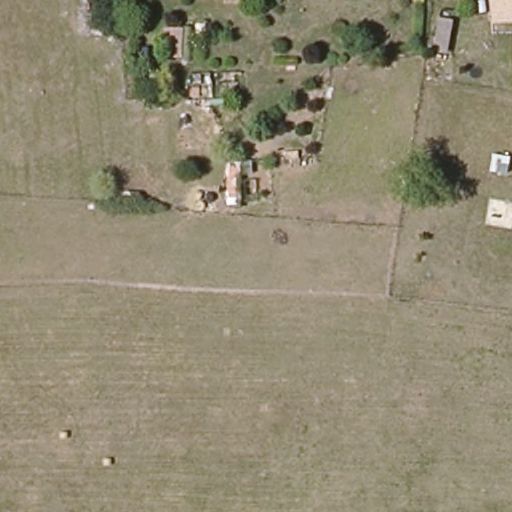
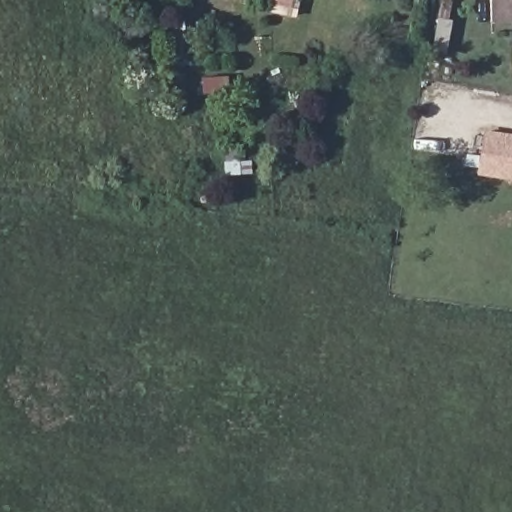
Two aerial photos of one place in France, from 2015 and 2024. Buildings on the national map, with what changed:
unchanged [(489,26),(488,0),(512,0),(512,24),(489,26)]
unchanged [(187,27),(185,61),(173,60),(174,26),(187,27)]
new [(478,175),(484,129),(512,133),(512,179),(478,175)]

